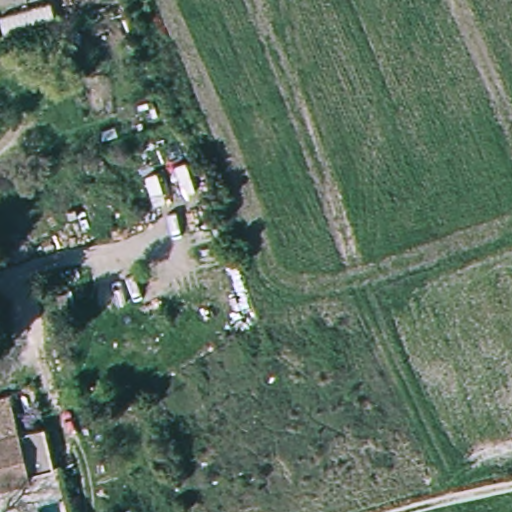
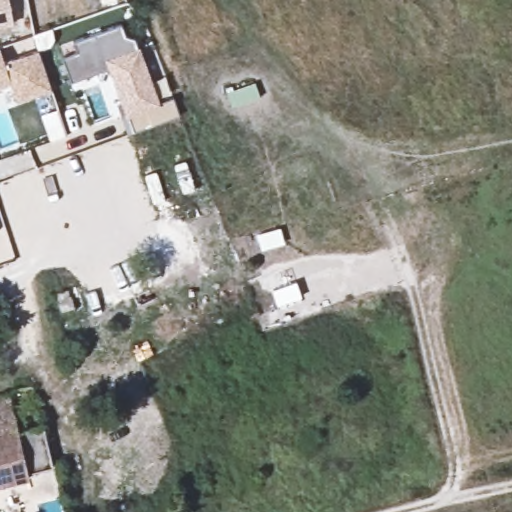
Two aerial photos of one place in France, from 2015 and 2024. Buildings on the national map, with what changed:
new [(14,25),(0,27),(0,0),(8,0),(14,25)]
new [(77,52),(73,41),(121,24),(125,36),(134,39),(137,46),(139,46),(160,104),(173,98),(179,115),(127,135),(116,104),(120,102),(108,67),(70,81),(61,57),(77,52)]
new [(4,61),(38,50),(52,90),(16,102),(9,83),(0,86),(0,50),(4,61)]
unchanged [(0,482),(0,395),(10,392),(17,429),(48,422),(58,467),(0,482)]

